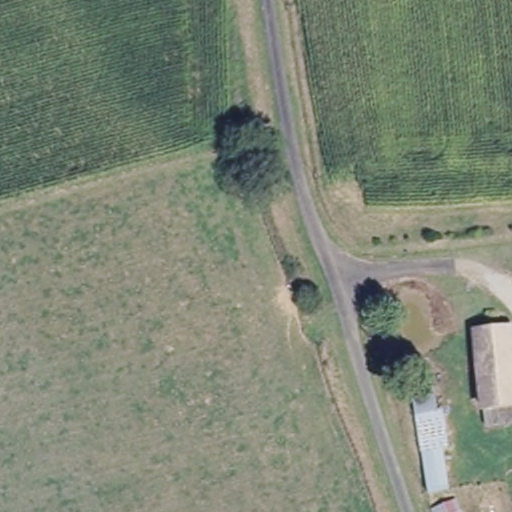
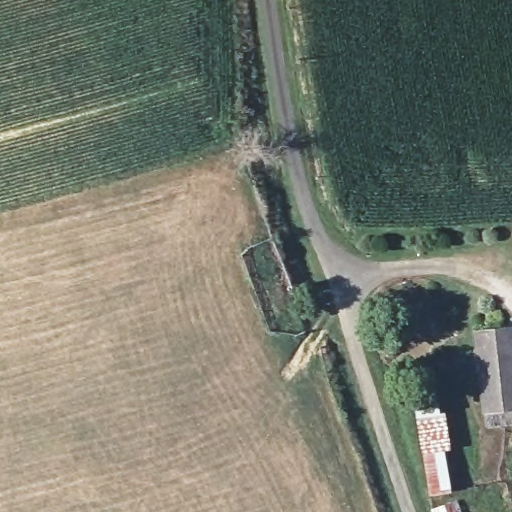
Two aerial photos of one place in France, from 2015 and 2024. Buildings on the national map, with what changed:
unchanged [(512,328),(512,332),(512,401),(482,403),(477,329),(500,327),(512,328)]
unchanged [(412,390),(441,384),(454,443),(445,445),(452,488),(430,492),(412,390)]

